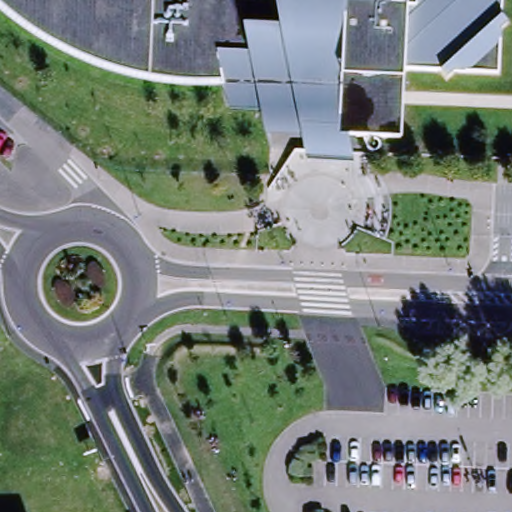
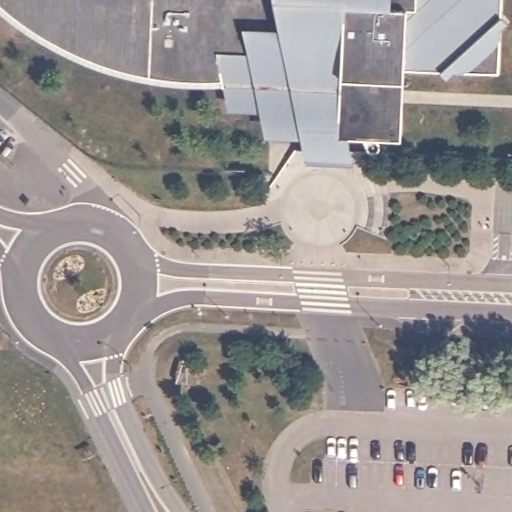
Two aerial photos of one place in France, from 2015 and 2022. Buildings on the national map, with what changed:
unchanged [(109,48),(75,35),(21,0),(501,0),(500,6),(507,14),(500,20),(453,62),(445,70),(439,61),(399,60),(396,129),(361,127),(332,125),(337,27),(317,26),(279,24),(277,18),(242,16),(249,44),(213,42),(216,66),(195,65),(143,57),(109,48)]
unchanged [(332,125),(331,149),(298,147),(296,125),(260,124),(257,101),(220,100),(219,94),(216,66),(213,42),(249,44),(242,16),(277,18),(279,24),(317,26),(337,27),(332,125)]
unchanged [(500,20),(498,65),(453,62),(500,20)]

